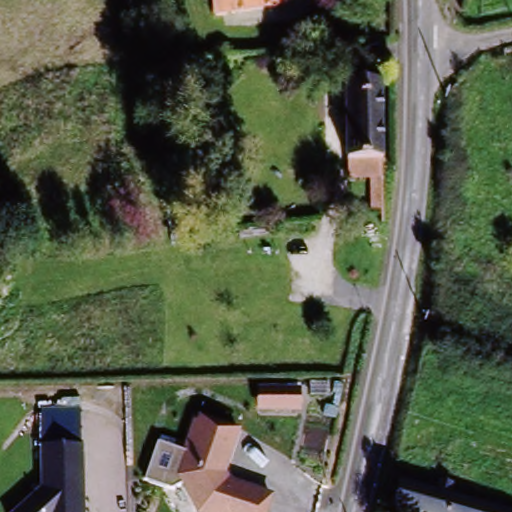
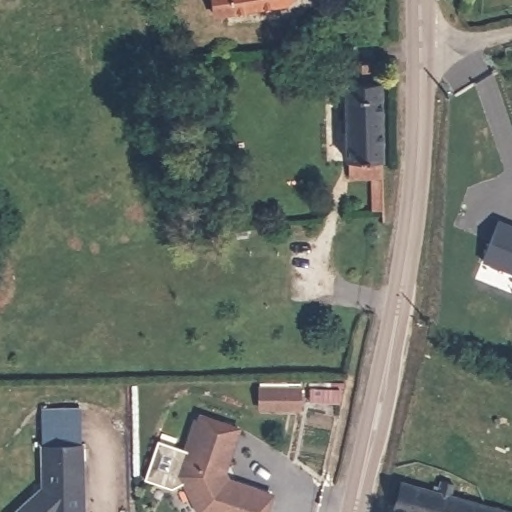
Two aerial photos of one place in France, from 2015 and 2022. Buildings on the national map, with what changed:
unchanged [(211,13),(210,0),(280,0),(280,4),(211,13)]
unchanged [(380,184),(352,185),(354,92),(358,92),(358,73),(373,73),(373,91),(381,90),(380,184)]
new [(482,259),(500,218),(512,224),(512,271),(482,259)]
unchanged [(175,469),(191,415),(240,427),(225,480),(273,495),(267,512),(195,512),(175,469)]
unchanged [(83,444),(85,512),(13,512),(41,486),(40,446),(83,444)]
unchanged [(504,512),(400,512),(406,488),(504,512)]

